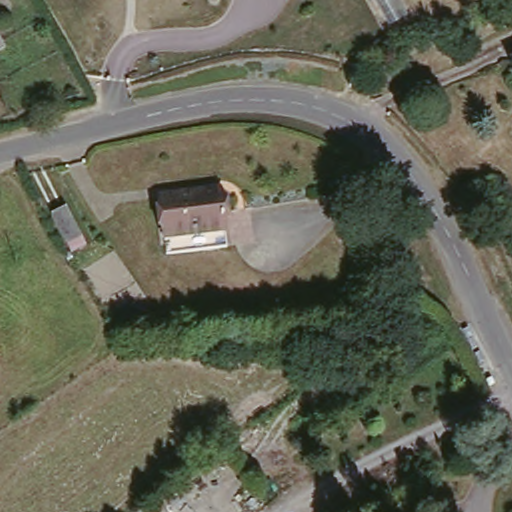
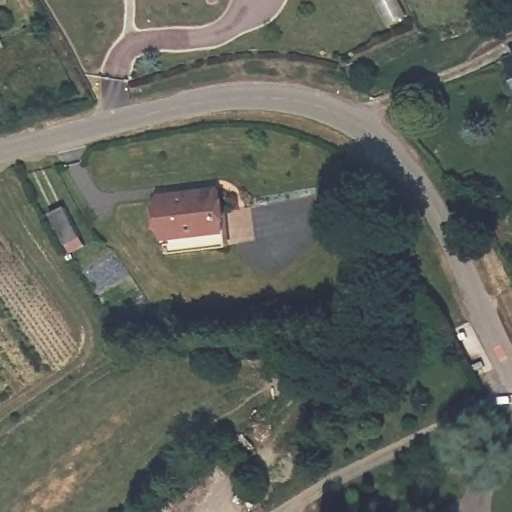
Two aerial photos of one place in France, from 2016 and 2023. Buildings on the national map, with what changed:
unchanged [(512,63),(512,65),(511,63),(512,63)]
unchanged [(220,182),(228,222),(231,241),(172,251),(168,232),(163,192),(220,182)]
unchanged [(63,204),(80,235),(65,244),(48,214),(63,204)]

